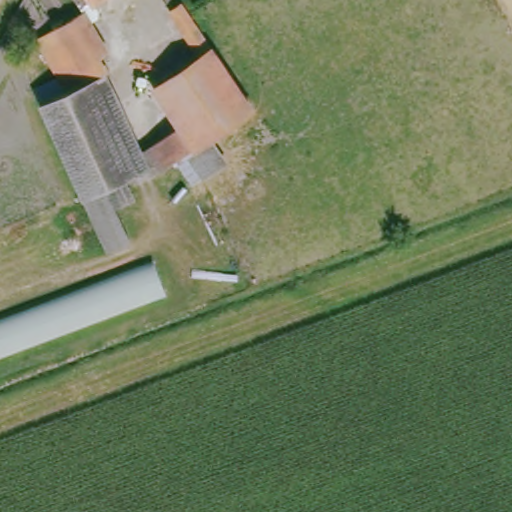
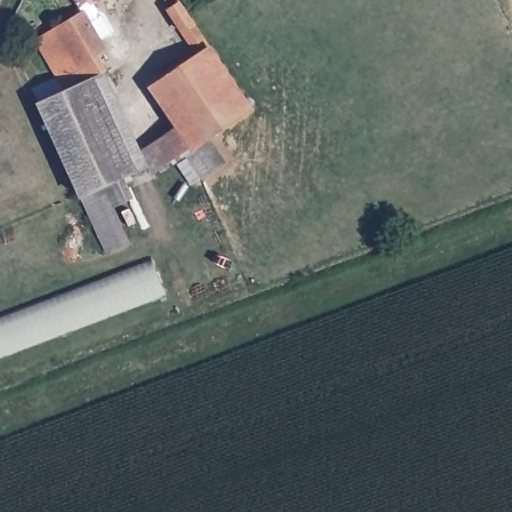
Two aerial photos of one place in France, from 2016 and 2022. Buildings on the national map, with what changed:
unchanged [(70,0),(81,0),(75,5),(70,0)]
unchanged [(84,0),(86,0),(85,1),(84,0)]
unchanged [(178,151),(154,168),(144,146),(174,124),(150,88),(162,80),(159,76),(167,70),(170,73),(194,57),(165,11),(160,0),(172,0),(248,109),(203,136),(220,159),(195,176),(178,151)]
unchanged [(78,12),(101,49),(76,64),(53,26),(78,12)]
unchanged [(34,38),(53,26),(76,64),(84,79),(62,89),(34,38)]
unchanged [(36,103),(62,89),(84,79),(127,170),(100,182),(102,189),(78,199),(36,103)]
unchanged [(102,189),(120,241),(96,251),(78,199),(102,189)]
unchanged [(151,256),(164,294),(0,355),(0,312),(151,256)]

